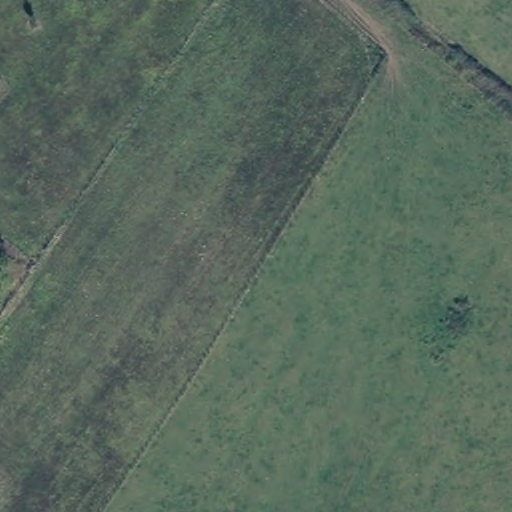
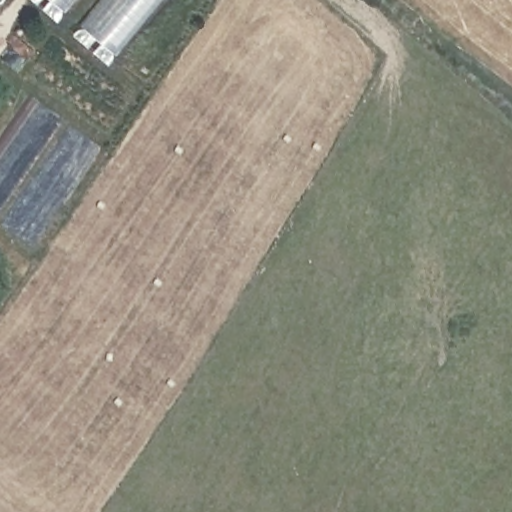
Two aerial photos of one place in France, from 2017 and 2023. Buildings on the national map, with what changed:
new [(52,0),(76,0),(65,12),(52,0)]
new [(79,23),(98,0),(162,0),(115,55),(79,23)]

